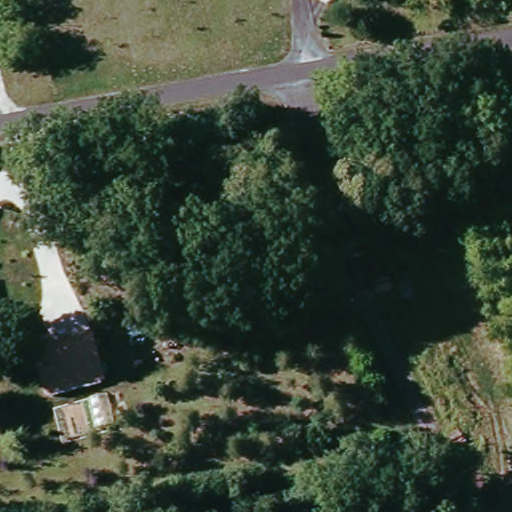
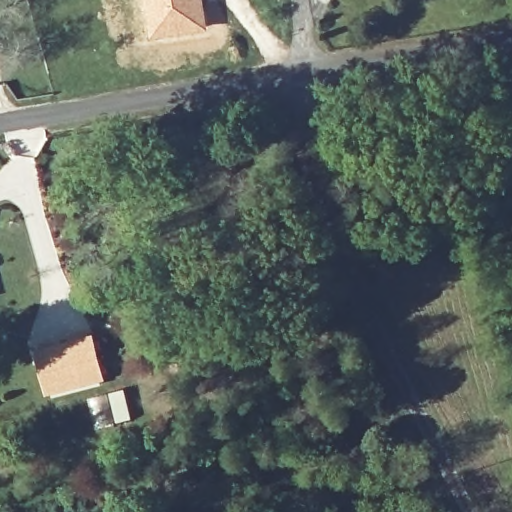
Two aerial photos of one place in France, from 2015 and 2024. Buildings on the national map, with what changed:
new [(208,29),(147,38),(141,0),(203,0),(208,29)]
unchanged [(107,380),(45,396),(34,349),(96,332),(107,380)]

